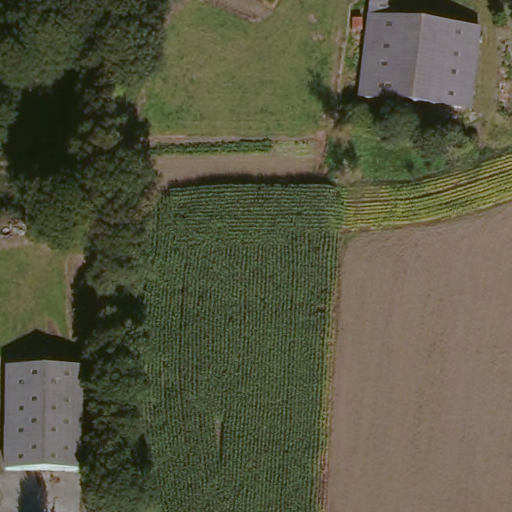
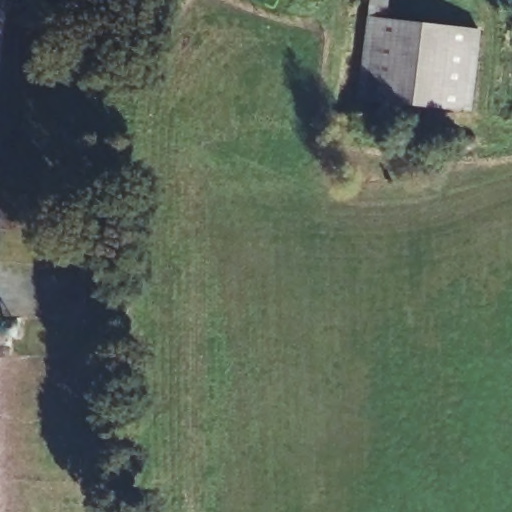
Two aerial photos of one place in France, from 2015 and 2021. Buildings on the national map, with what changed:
unchanged [(356,104),(368,4),(386,6),(385,18),(397,20),(396,27),(386,107),(356,104)]
unchanged [(396,27),(446,34),(436,113),(386,107),(396,27)]
unchanged [(446,34),(476,37),(466,117),(436,113),(446,34)]
demolished [(76,370),(79,475),(3,477),(0,372),(76,370)]

